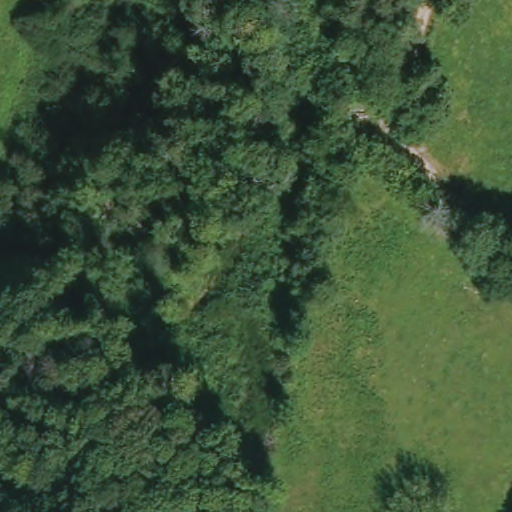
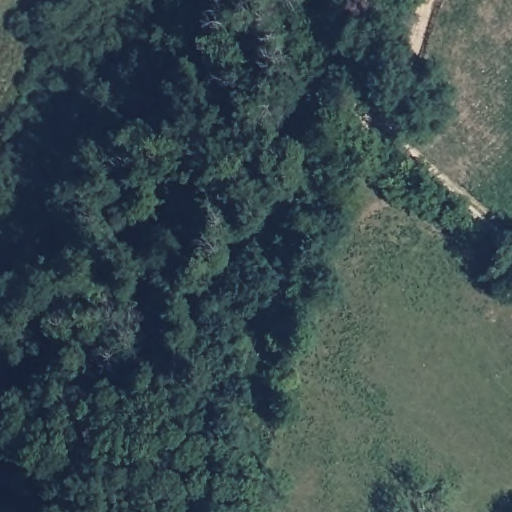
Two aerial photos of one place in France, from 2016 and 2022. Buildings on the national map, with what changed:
[]

